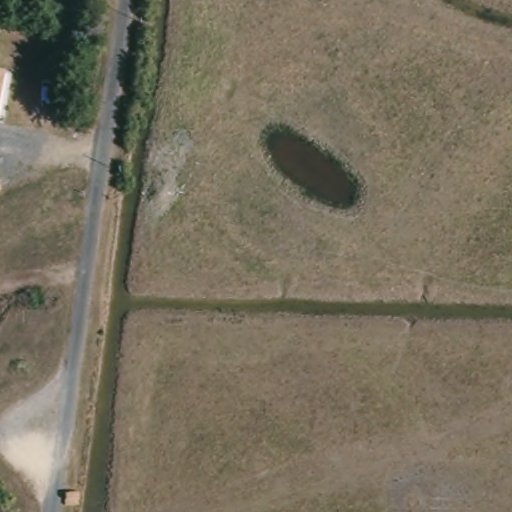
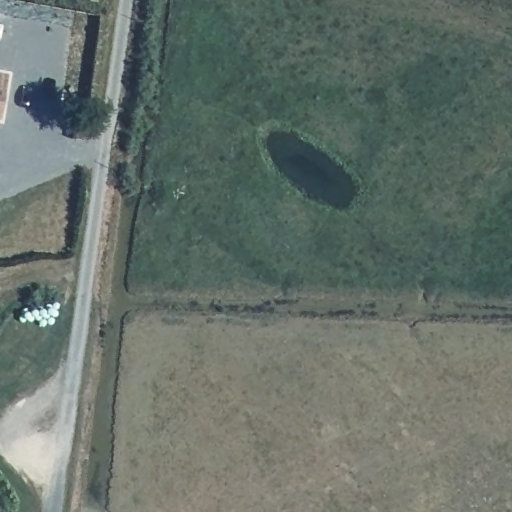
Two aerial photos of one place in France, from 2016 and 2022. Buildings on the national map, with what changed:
unchanged [(0,108),(0,86),(4,87),(0,108)]

